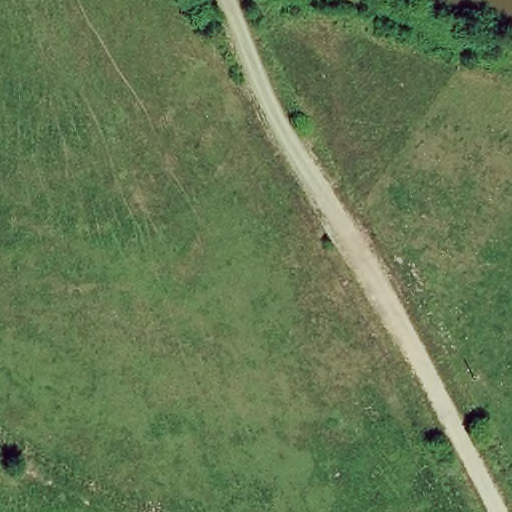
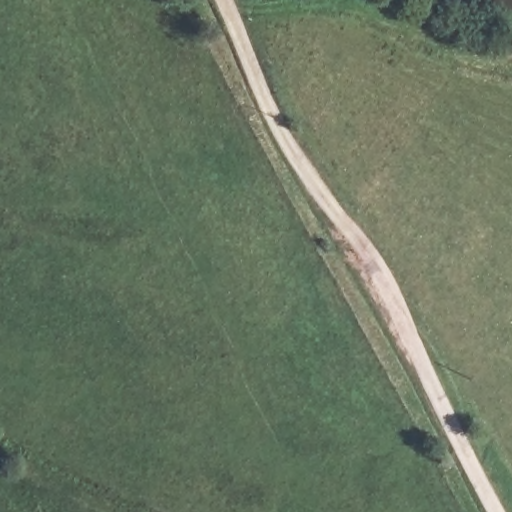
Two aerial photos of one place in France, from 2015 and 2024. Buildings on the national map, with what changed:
[]

